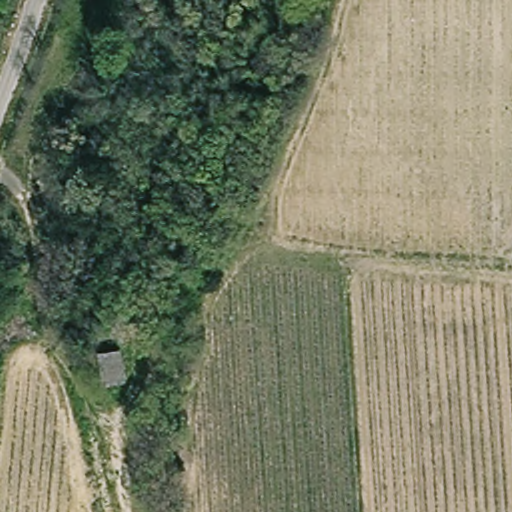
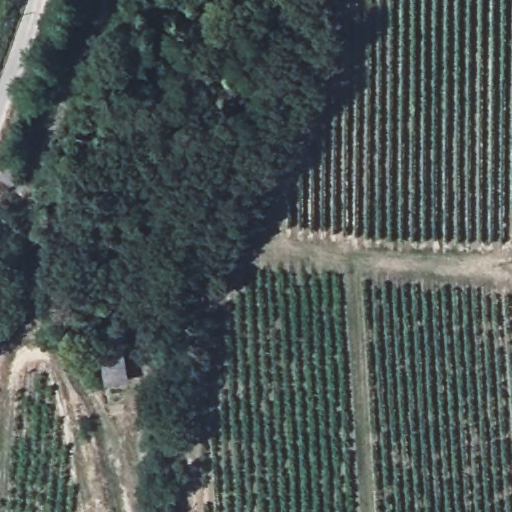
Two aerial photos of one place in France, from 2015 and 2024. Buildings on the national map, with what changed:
unchanged [(104,352),(132,349),(136,380),(108,384),(104,352)]

